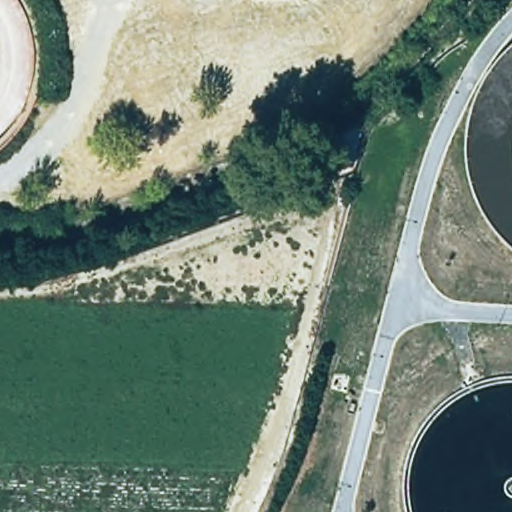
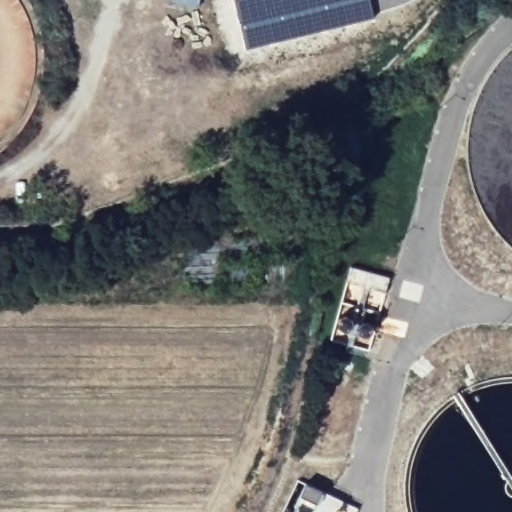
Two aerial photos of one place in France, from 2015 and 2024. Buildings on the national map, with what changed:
new [(373,17),(245,49),(233,0),(368,0),(373,17)]
new [(343,500),(337,512),(317,512),(297,498),(305,482),(343,500)]
new [(295,512),(291,512),(292,510),(295,512)]

